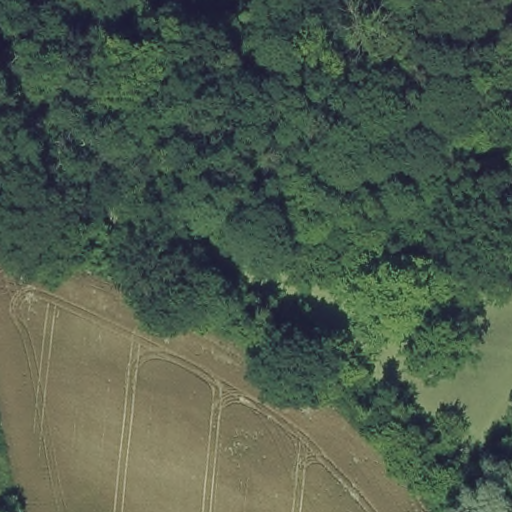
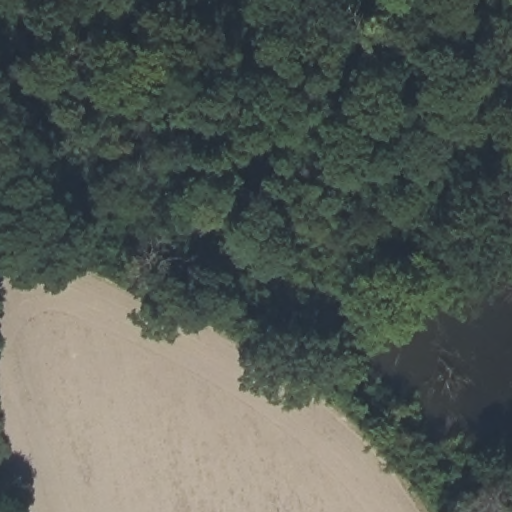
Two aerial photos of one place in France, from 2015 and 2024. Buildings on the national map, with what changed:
unchanged [(445,27),(442,13),(458,9),(460,25),(445,27)]

